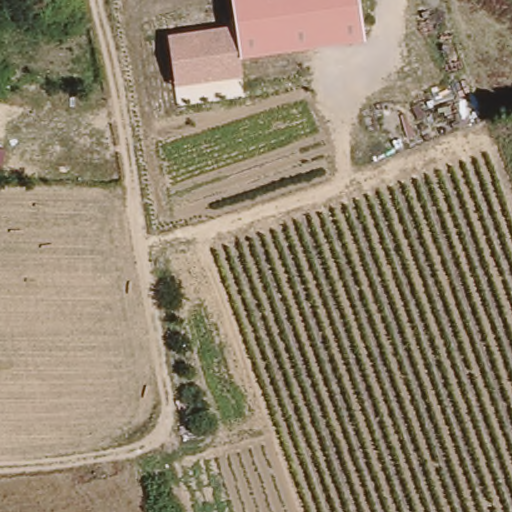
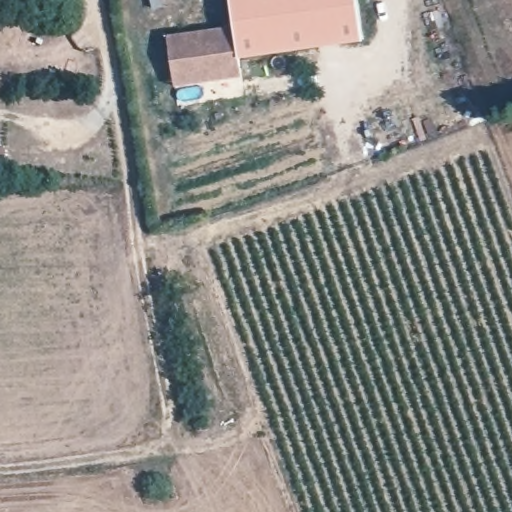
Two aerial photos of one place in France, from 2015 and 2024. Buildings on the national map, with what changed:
unchanged [(354,0),(360,43),(238,61),(226,0),(354,0)]
unchanged [(238,61),(240,76),(174,84),(168,37),(232,29),(238,61)]

